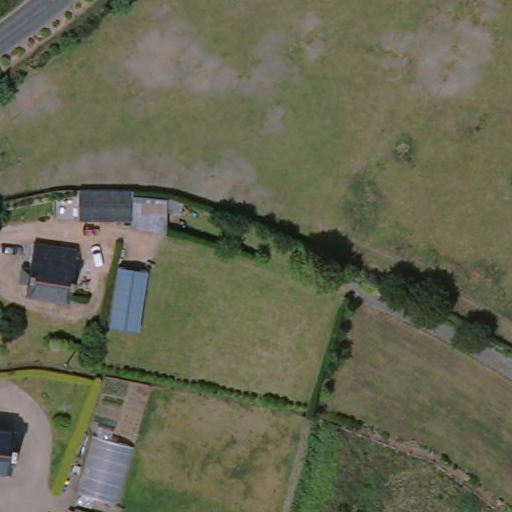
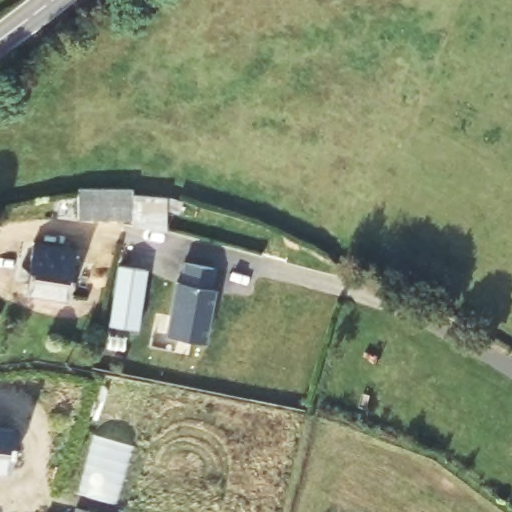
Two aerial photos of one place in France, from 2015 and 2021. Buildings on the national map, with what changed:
unchanged [(134,193),(134,196),(169,198),(183,201),(180,219),(167,218),(165,229),(134,227),(134,219),(79,220),(79,193),(134,193)]
unchanged [(26,273),(36,275),(39,250),(86,257),(76,309),(31,301),(33,290),(23,289),(26,273)]
new [(174,282),(182,282),(186,264),(214,269),(211,287),(216,289),(206,343),(166,335),(174,282)]
unchanged [(148,271),(136,329),(109,324),(120,265),(148,271)]
unchanged [(12,430),(6,471),(0,470),(0,428),(12,430)]
unchanged [(111,509),(79,500),(101,440),(132,448),(111,509)]

